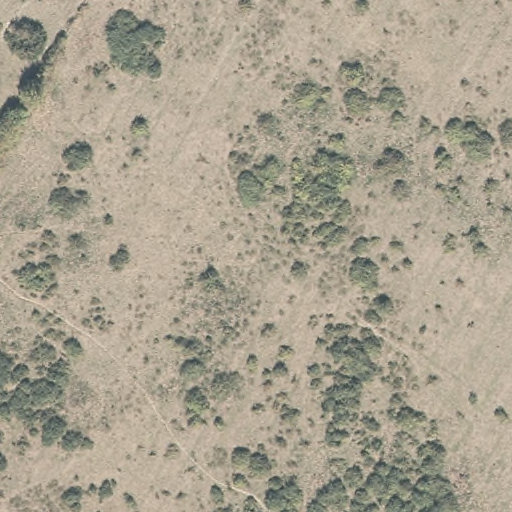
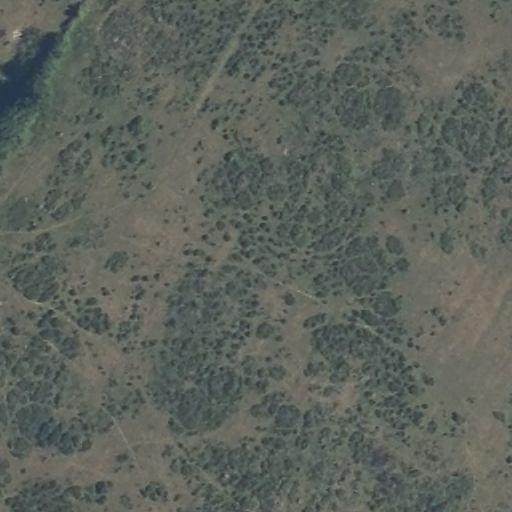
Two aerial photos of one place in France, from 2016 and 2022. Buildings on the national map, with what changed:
[]

